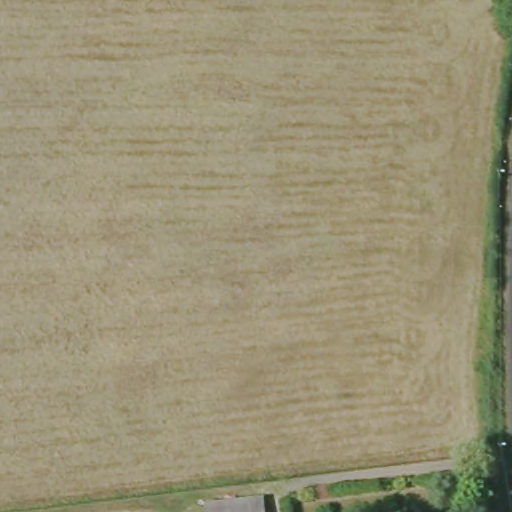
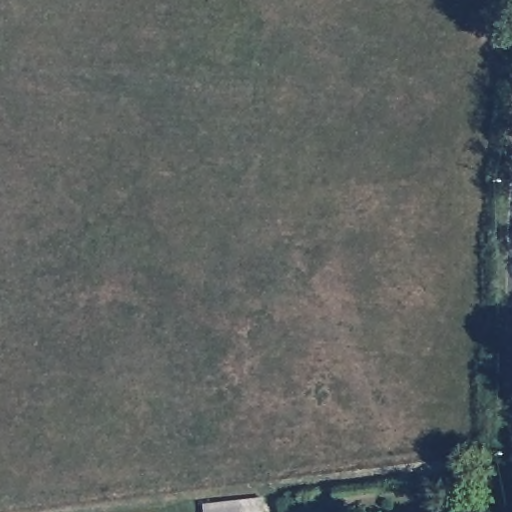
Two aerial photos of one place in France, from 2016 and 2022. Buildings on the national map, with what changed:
unchanged [(261,496),(262,512),(202,512),(201,502),(261,496)]

